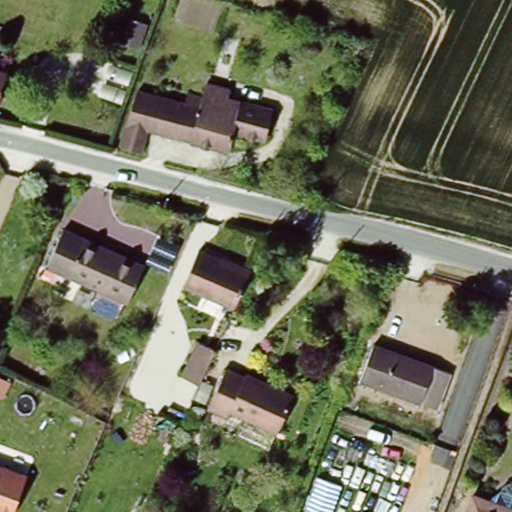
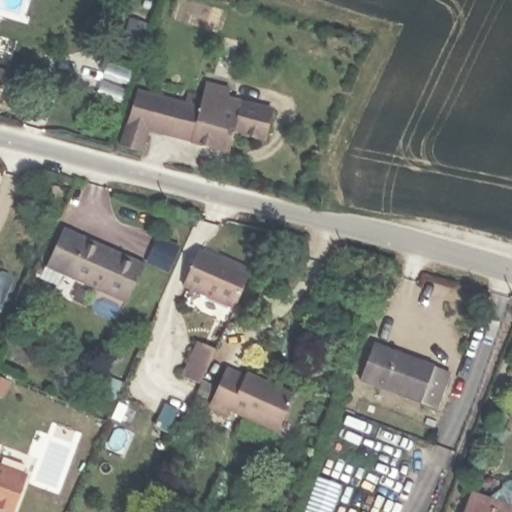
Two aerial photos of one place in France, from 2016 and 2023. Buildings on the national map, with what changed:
unchanged [(6,44),(0,64),(0,42),(6,44)]
unchanged [(8,69),(0,93),(0,66),(8,69)]
unchanged [(267,141),(235,132),(229,154),(150,132),(145,152),(122,146),(140,82),(202,100),(204,96),(230,103),(228,111),(241,115),(244,105),(275,114),(267,141)]
unchanged [(135,307),(47,268),(63,232),(90,244),(118,256),(150,271),(135,307)]
unchanged [(234,313),(179,287),(203,242),(254,263),(234,313)]
unchanged [(457,372),(443,407),(366,377),(380,342),(457,372)]
unchanged [(244,381),(246,376),(258,381),(294,398),(280,429),(233,407),(228,417),(209,408),(225,372),(244,381)]
unchanged [(185,416),(172,443),(158,436),(170,410),(185,416)]
unchanged [(25,470),(9,512),(0,512),(0,461),(25,470)]
unchanged [(466,512),(475,487),(512,500),(512,512),(466,512)]

